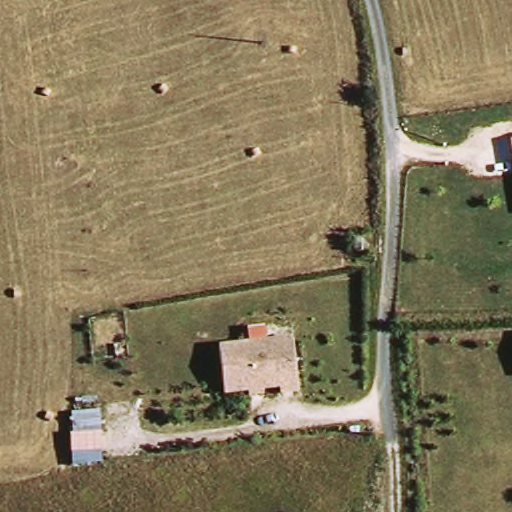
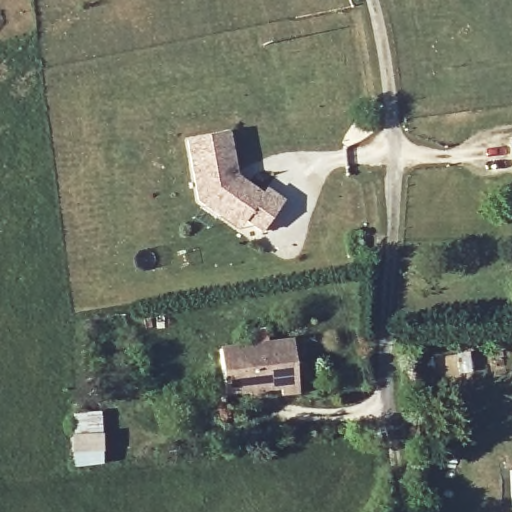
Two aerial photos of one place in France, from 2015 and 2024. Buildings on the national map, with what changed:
new [(230,133),(237,174),(265,194),(269,187),(287,200),(263,233),(248,222),(241,233),(197,203),(187,141),(230,133)]
unchanged [(300,388),(232,398),(225,346),(295,338),(300,388)]
new [(74,467),(72,420),(102,419),(104,465),(74,467)]

